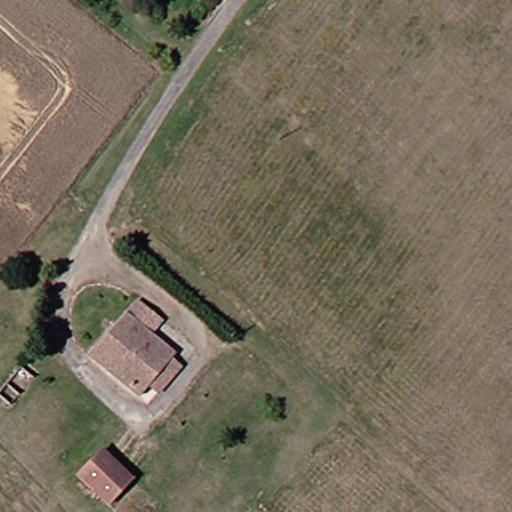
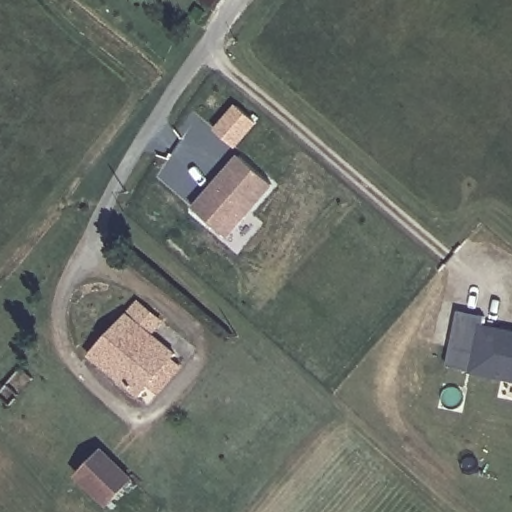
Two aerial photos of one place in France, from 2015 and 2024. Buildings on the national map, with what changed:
new [(274,184),(228,238),(192,207),(238,154),(274,184)]
unchanged [(138,294),(191,346),(136,402),(87,355),(138,294)]
new [(512,382),(470,373),(479,325),(512,331),(512,382)]
unchanged [(102,447),(160,501),(150,512),(115,512),(76,477),(102,447)]

